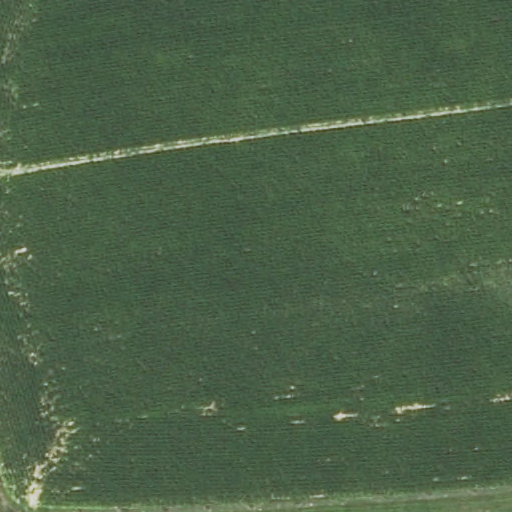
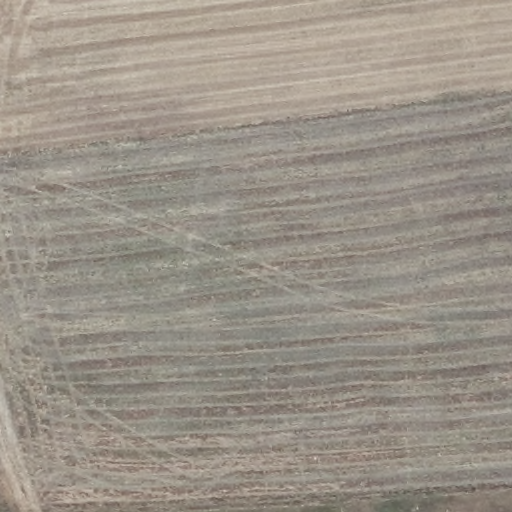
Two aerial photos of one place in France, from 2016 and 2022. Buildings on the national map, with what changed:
[]

